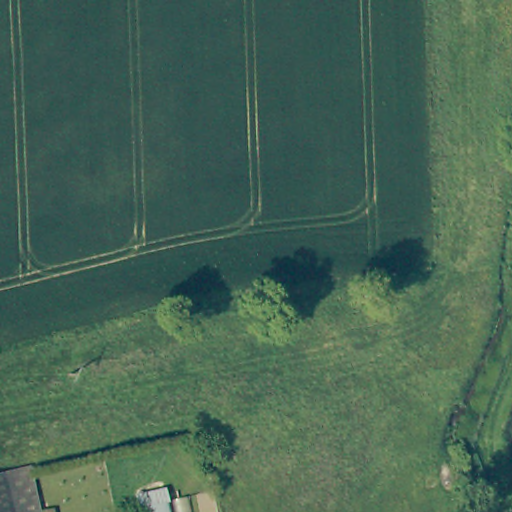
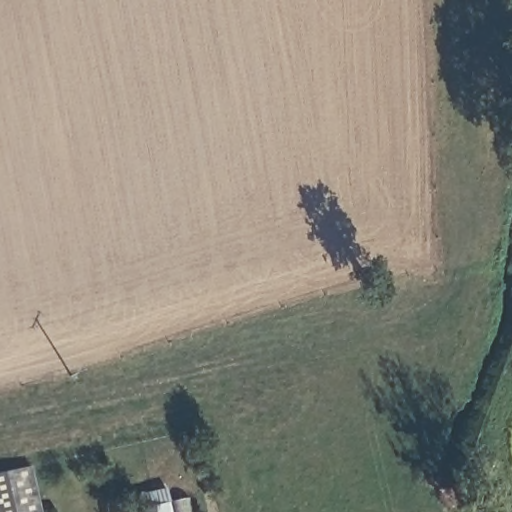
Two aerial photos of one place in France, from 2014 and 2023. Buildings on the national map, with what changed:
unchanged [(41,512),(15,512),(7,472),(31,466),(41,512)]
unchanged [(7,472),(15,512),(0,512),(0,473),(7,472)]
unchanged [(176,512),(146,512),(142,496),(171,490),(176,512)]

